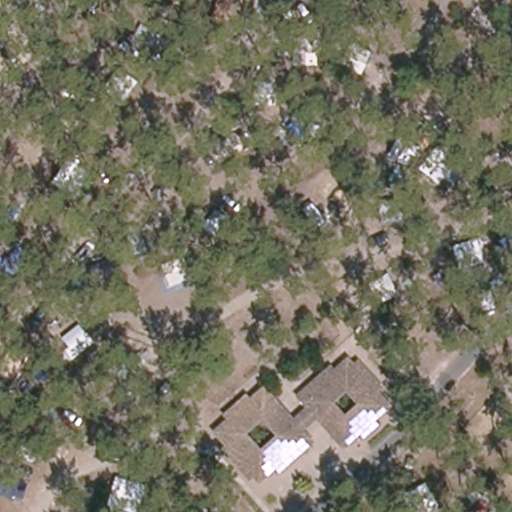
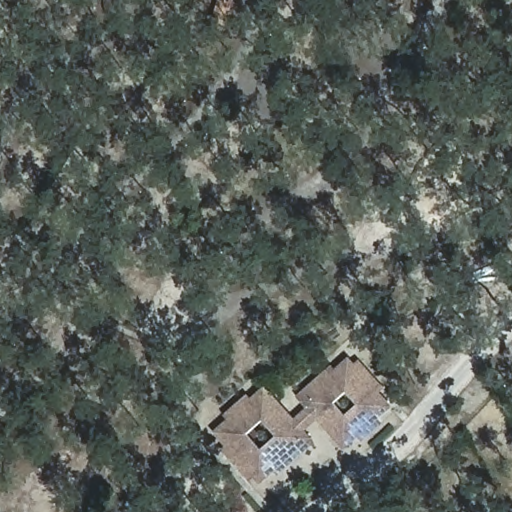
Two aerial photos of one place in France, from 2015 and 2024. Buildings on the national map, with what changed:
unchanged [(318,422),(308,430),(318,442),(289,471),(283,465),(258,486),(229,457),(214,432),(264,386),(293,417),(306,406),(298,397),(348,355),(394,407),(344,447),(318,422)]

